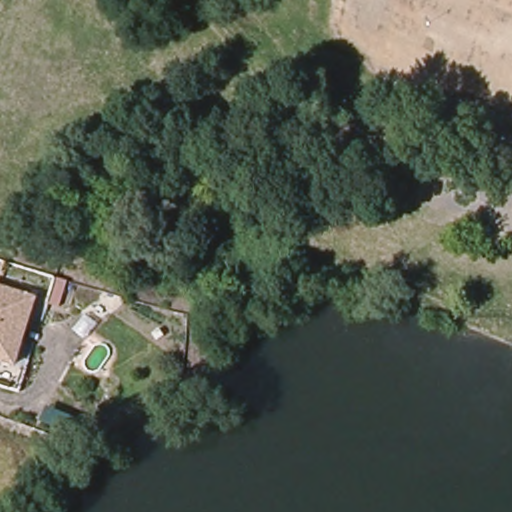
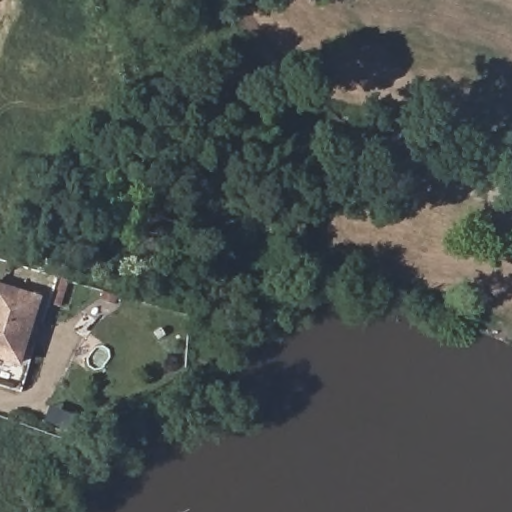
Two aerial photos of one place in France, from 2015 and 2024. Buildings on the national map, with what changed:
unchanged [(30,294),(20,335),(26,336),(19,363),(0,358),(0,285),(30,294)]

